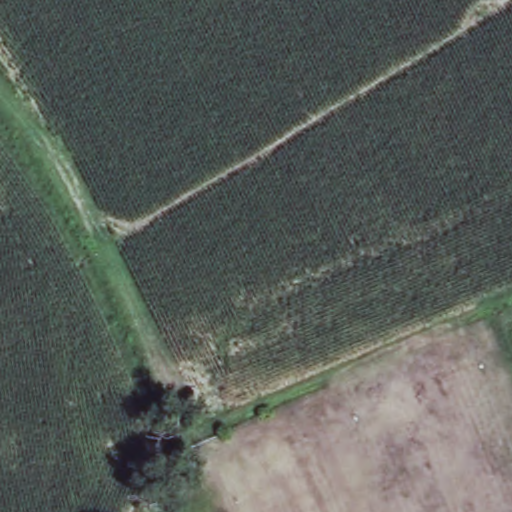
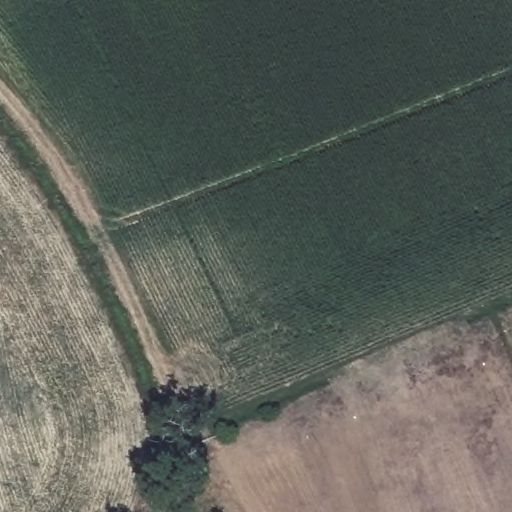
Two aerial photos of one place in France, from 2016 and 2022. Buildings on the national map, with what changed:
[]

